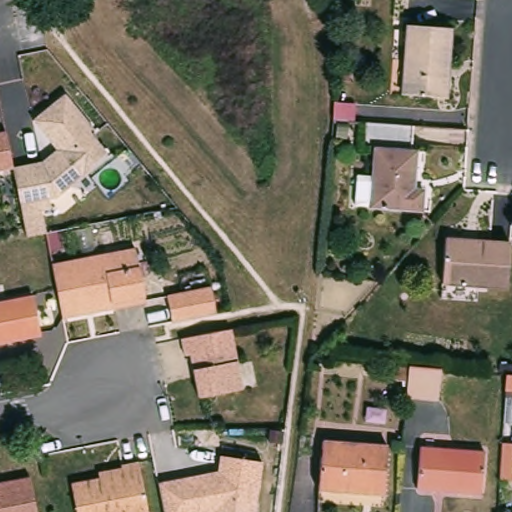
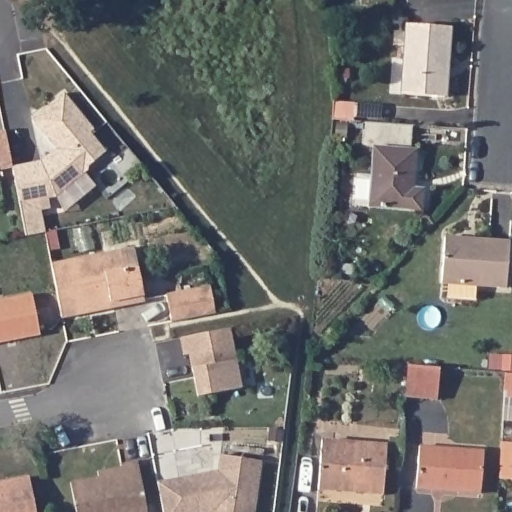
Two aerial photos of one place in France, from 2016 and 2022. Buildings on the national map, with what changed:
unchanged [(408,27),(448,31),(442,102),(403,97),(408,27)]
unchanged [(110,153),(50,200),(53,213),(22,219),(13,170),(60,153),(33,122),(65,95),(110,153)]
unchanged [(367,186),(381,187),(384,155),(371,153),(374,129),(425,132),(423,152),(427,152),(423,194),(431,195),(430,221),(365,214),(367,186)]
unchanged [(512,240),(512,287),(447,281),(450,234),(512,240)]
unchanged [(136,250),(143,305),(62,323),(54,269),(136,250)]
unchanged [(213,288),(220,314),(171,323),(168,297),(213,288)]
unchanged [(33,297),(41,334),(0,343),(0,305),(33,297)]
unchanged [(234,331),(244,388),(200,398),(189,337),(234,331)]
unchanged [(394,381),(395,368),(409,369),(441,371),(439,402),(407,401),(408,383),(394,381)]
unchanged [(327,445),(385,449),(380,496),(323,491),(327,445)]
unchanged [(419,449),(483,453),(482,494),(415,491),(419,449)]
unchanged [(265,466),(258,512),(169,512),(162,481),(217,473),(220,458),(265,466)]
unchanged [(512,482),(510,482),(512,465),(512,482)]
unchanged [(149,512),(76,512),(71,486),(97,480),(97,474),(140,467),(149,512)]
unchanged [(38,512),(0,512),(0,486),(30,479),(38,512)]

